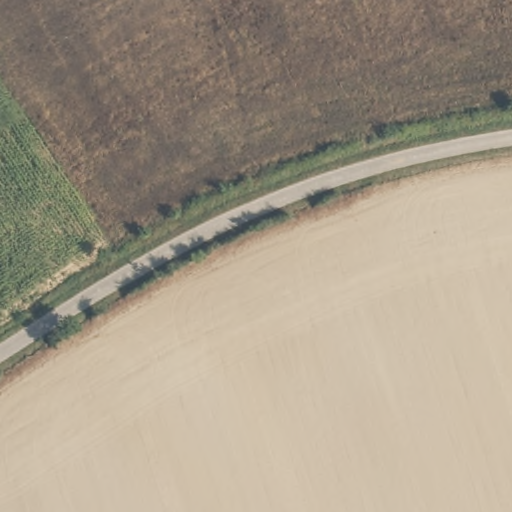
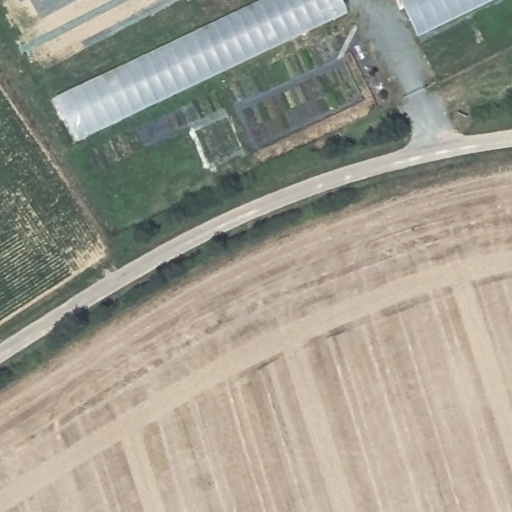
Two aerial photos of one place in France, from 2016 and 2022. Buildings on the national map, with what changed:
new [(258,0),(341,0),(347,11),(74,142),(53,98),(258,0)]
new [(415,36),(397,0),(490,0),(415,36)]

